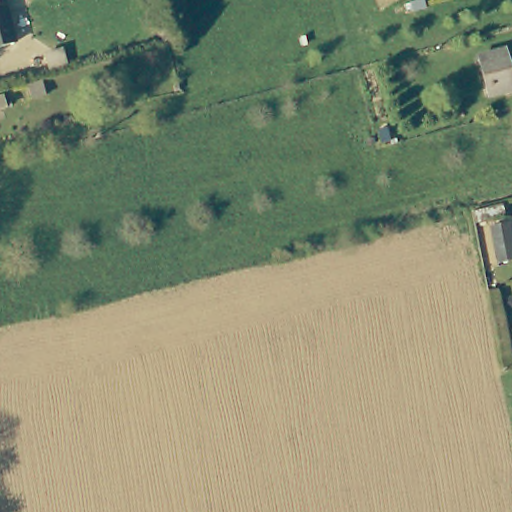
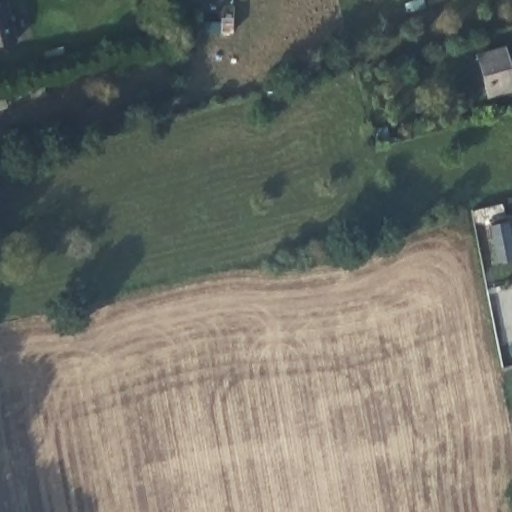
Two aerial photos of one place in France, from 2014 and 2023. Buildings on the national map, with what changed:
unchanged [(0,45),(0,0),(8,0),(17,41),(0,45)]
unchanged [(512,74),(512,89),(493,95),(484,63),(507,56),(512,74)]
unchanged [(512,230),(512,261),(502,263),(496,228),(511,225),(512,230)]

